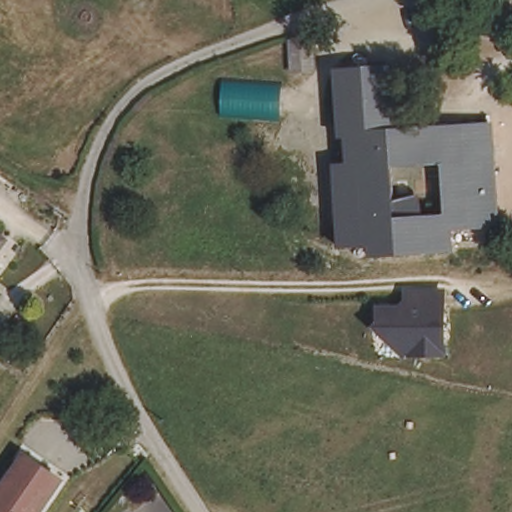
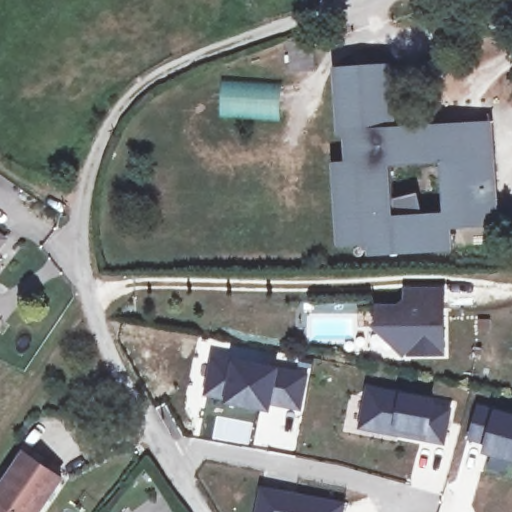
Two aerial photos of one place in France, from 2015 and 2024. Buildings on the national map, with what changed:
unchanged [(317,75),(298,76),(296,46),(315,46),(317,75)]
unchanged [(370,69),(400,67),(402,128),(495,123),(499,222),(450,223),(450,248),(373,252),(372,238),(370,69)]
unchanged [(372,238),(339,239),(336,161),(352,159),(352,136),(345,136),(342,70),(370,69),(372,238)]
unchanged [(282,85),(282,122),(225,121),(226,83),(282,85)]
unchanged [(0,240),(0,221),(9,226),(0,240)]
unchanged [(404,346),(395,346),(389,342),(388,329),(379,330),(378,310),(400,309),(402,313),(405,306),(404,293),(443,292),(445,356),(412,357),(405,357),(404,346)]
new [(212,345),(240,349),(239,355),(310,367),(302,411),(273,406),(271,413),(203,395),(212,345)]
new [(365,383),(453,399),(445,445),(358,428),(365,383)]
new [(477,402),(512,412),(512,462),(482,453),(484,443),(467,439),(477,402)]
new [(215,414),(254,422),(250,445),(211,439),(215,414)]
unchanged [(65,481),(44,512),(0,512),(0,498),(30,455),(65,481)]
new [(347,501),(345,512),(254,512),(259,483),(347,501)]

